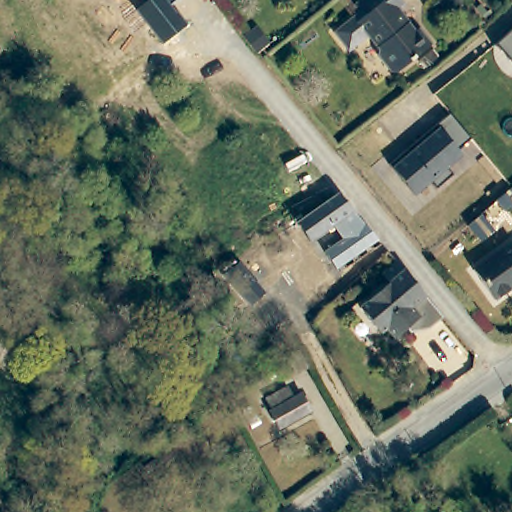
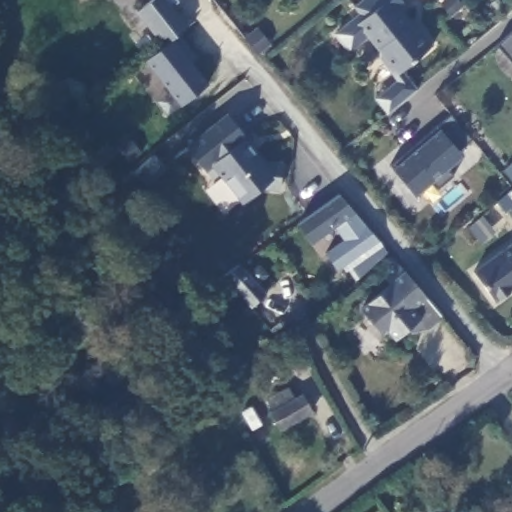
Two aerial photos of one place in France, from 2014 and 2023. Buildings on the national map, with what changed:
unchanged [(163,46),(134,12),(150,0),(177,0),(178,0),(172,5),(187,25),(163,46)]
unchanged [(393,69),(379,52),(381,46),(370,33),(351,48),(337,31),(361,11),(355,4),(360,0),(404,0),(407,3),(401,8),(411,19),(409,20),(416,28),(420,25),(433,41),(399,69),(393,69)]
unchanged [(496,44),(512,30),(512,63),(496,44)]
new [(178,33),(198,57),(192,63),(209,85),(182,108),(170,115),(159,99),(169,91),(146,61),(163,46),(178,33)]
new [(404,75),(416,91),(389,111),(379,96),(404,75)]
new [(280,190),(262,188),(242,203),(219,173),(210,179),(184,144),(225,109),(264,159),(281,160),(280,190)]
unchanged [(458,149),(464,157),(450,170),(453,174),(437,189),(433,183),(417,196),(389,165),(449,115),(472,139),(458,149)]
unchanged [(511,207),(504,212),(495,201),(512,187),(512,210),(511,207)]
unchanged [(339,269),(324,251),(343,238),(334,228),(314,242),(297,222),(338,193),(380,240),(339,269)]
unchanged [(465,266),(484,252),(504,238),(507,242),(512,239),(512,281),(507,284),(489,297),(465,266)]
new [(241,259),(264,292),(248,304),(220,274),(241,259)]
unchanged [(396,328),(387,335),(379,328),(373,333),(353,306),(384,282),(380,276),(376,271),(391,259),(392,259),(397,266),(420,294),(437,316),(404,340),(396,328)]
unchanged [(269,410),(272,408),(265,397),(287,385),(294,397),(302,393),(311,410),(280,428),(269,410)]

